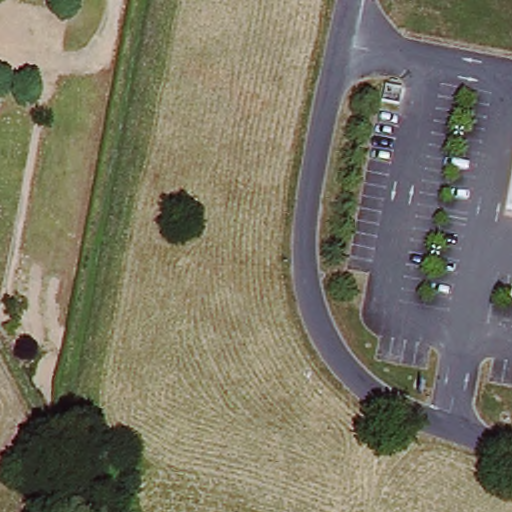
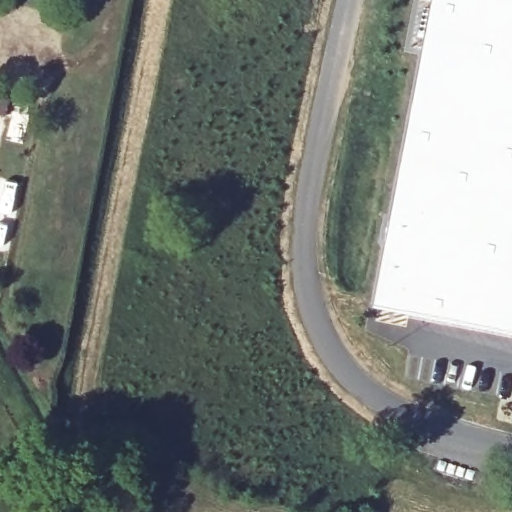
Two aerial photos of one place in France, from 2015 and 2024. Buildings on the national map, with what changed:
new [(375,306),(432,0),(512,0),(512,333),(375,306)]

